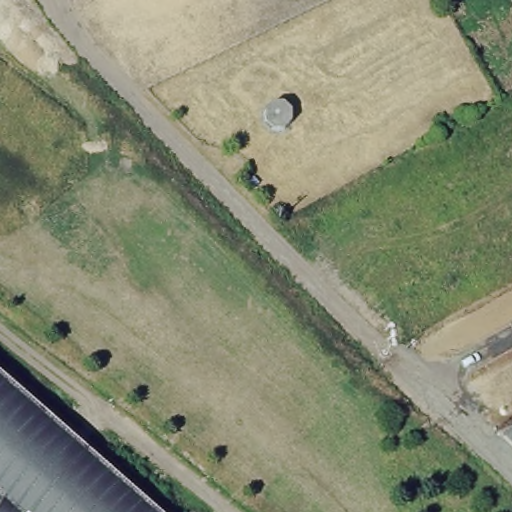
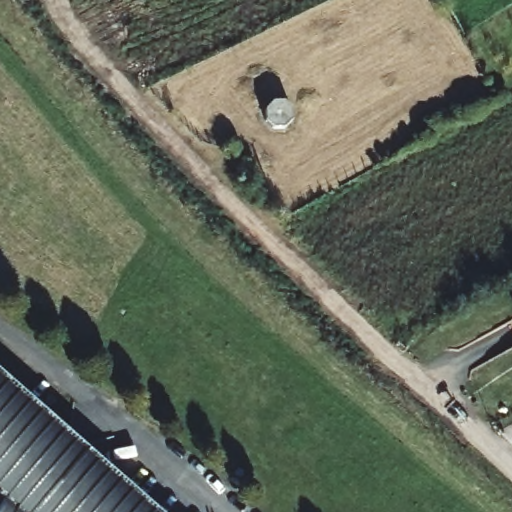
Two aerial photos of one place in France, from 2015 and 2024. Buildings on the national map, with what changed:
unchanged [(286,100),(293,115),(285,129),(267,128),(260,113),(269,99),(286,100)]
unchanged [(155,512),(0,512),(0,378),(155,512)]

